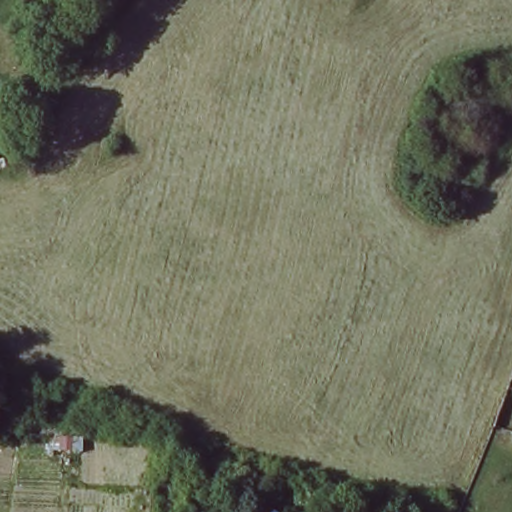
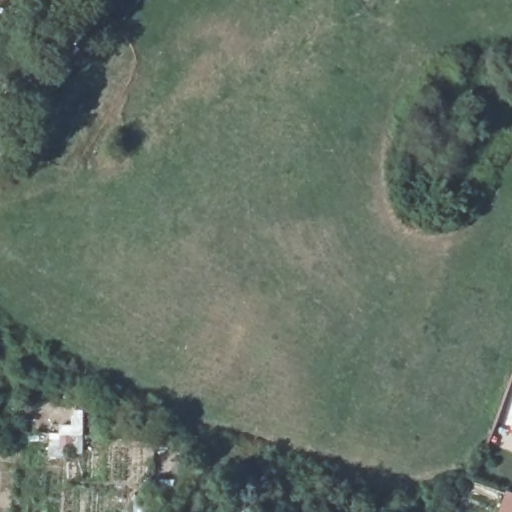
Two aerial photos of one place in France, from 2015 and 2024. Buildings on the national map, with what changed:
new [(512,494),(512,512),(497,512),(504,491),(512,494)]

